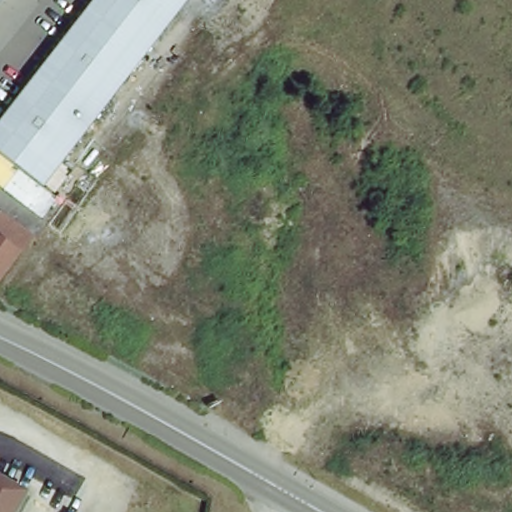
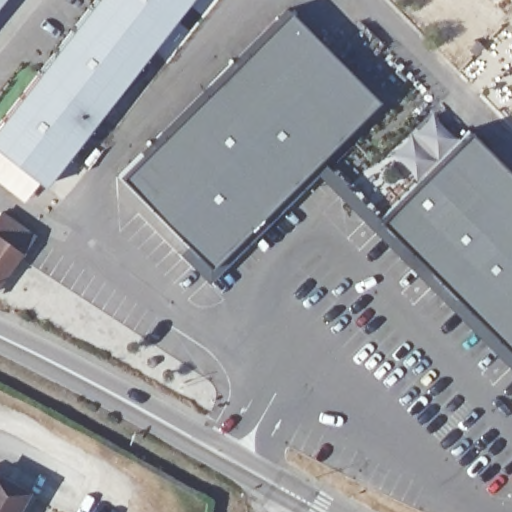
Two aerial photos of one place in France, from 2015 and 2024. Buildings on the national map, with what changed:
unchanged [(0,145),(0,121),(94,0),(185,0),(45,179),(0,145)]
new [(209,266),(119,176),(287,9),(375,99),(209,266)]
new [(468,130),(512,175),(512,354),(378,219),(468,130)]
unchanged [(32,232),(23,243),(0,276),(0,210),(0,209),(32,232)]
unchanged [(5,512),(0,512),(0,471),(22,483),(5,512)]
unchanged [(16,512),(5,512),(22,483),(30,487),(16,512)]

